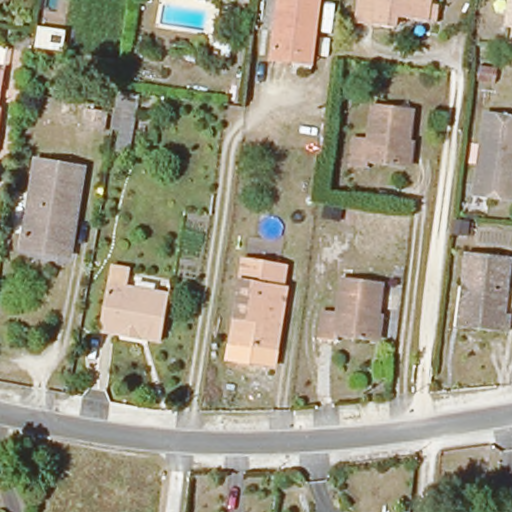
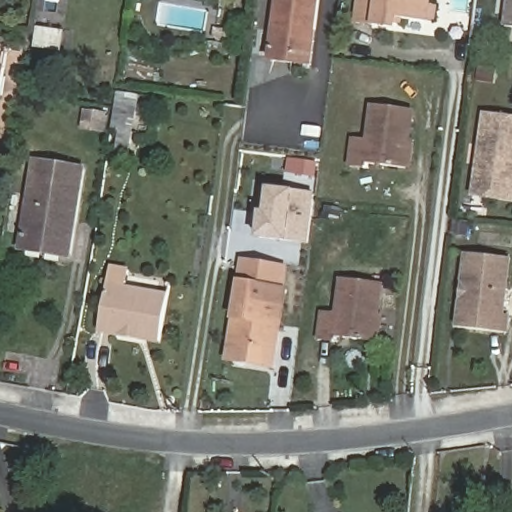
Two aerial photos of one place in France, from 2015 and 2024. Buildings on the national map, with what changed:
unchanged [(302,67),(273,64),(280,0),(320,0),(317,31),(307,30),(302,67)]
unchanged [(423,21),(395,17),(393,28),(352,22),(355,0),(426,0),(423,21)]
unchanged [(508,0),(512,0),(512,28),(505,27),(508,0)]
unchanged [(69,35),(66,52),(39,48),(41,30),(69,35)]
unchanged [(4,70),(1,95),(0,94),(0,70),(4,70)]
unchanged [(130,154),(117,151),(120,131),(113,130),(116,113),(118,94),(139,96),(137,115),(136,119),(130,154)]
unchanged [(351,166),(355,137),(369,139),(374,104),(414,110),(407,168),(368,164),(367,167),(351,166)]
unchanged [(84,110),(106,111),(106,130),(83,130),(84,110)]
unchanged [(484,146),(489,117),(512,120),(512,200),(478,195),(482,167),(484,146)]
unchanged [(84,169),(70,256),(22,249),(37,160),(84,169)]
new [(262,212),(267,213),(270,189),(313,194),(308,242),(259,236),(262,212)]
unchanged [(469,223),(468,236),(454,235),(455,221),(469,223)]
unchanged [(510,257),(504,314),(509,315),(507,332),(459,326),(468,252),(510,257)]
unchanged [(230,346),(235,321),(232,320),(240,266),(271,271),(268,292),(281,295),(273,343),(260,341),(258,353),(250,352),(251,350),(230,346)]
unchanged [(147,332),(119,327),(117,337),(101,335),(112,273),(130,275),(127,293),(168,300),(161,345),(146,342),(147,332)]
unchanged [(383,283),(376,341),(336,337),(336,342),(320,339),(324,311),(338,313),(343,278),(383,283)]

